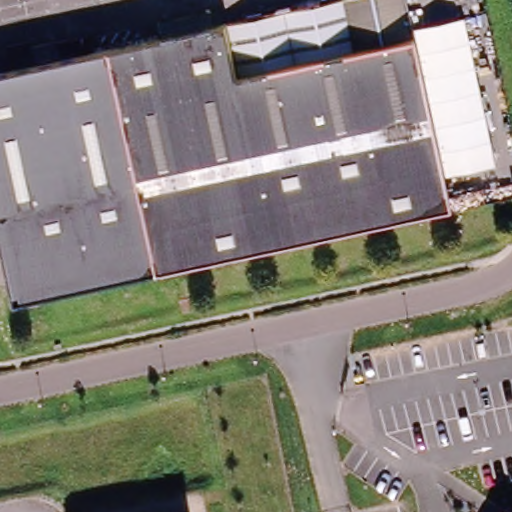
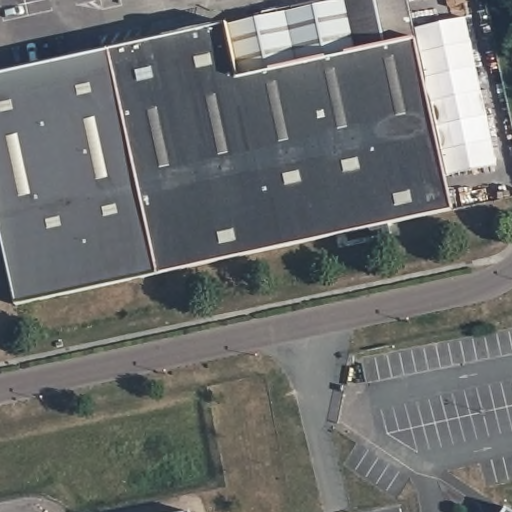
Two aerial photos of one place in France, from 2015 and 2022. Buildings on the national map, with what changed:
unchanged [(400,0),(407,28),(459,19),(474,88),(480,86),(484,108),(478,111),(488,167),(440,176),(447,211),(10,305),(0,260),(0,71),(328,0),(400,0)]
unchanged [(502,501),(512,507),(512,512),(495,512),(502,501)]
unchanged [(194,511),(194,512),(186,512),(194,511)]

